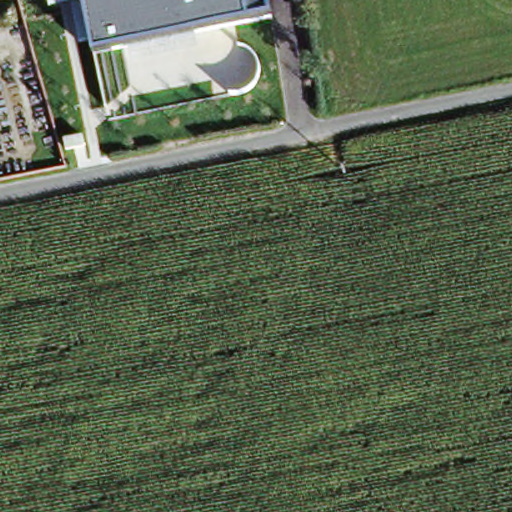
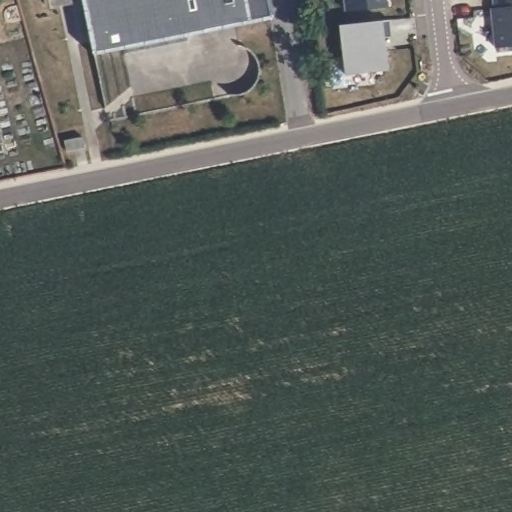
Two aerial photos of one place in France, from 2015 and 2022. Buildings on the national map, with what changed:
unchanged [(274,15),(93,51),(89,41),(79,43),(73,4),(50,8),(49,0),(271,0),(274,15)]
new [(384,7),(342,12),(341,0),(383,0),(384,7)]
new [(493,13),(491,0),(512,0),(512,49),(494,50),(490,14),(493,13)]
new [(384,17),(386,33),(379,34),(384,64),(344,69),(339,23),(384,17)]

